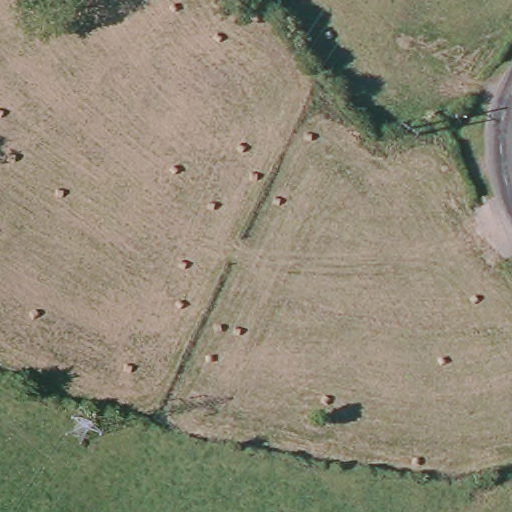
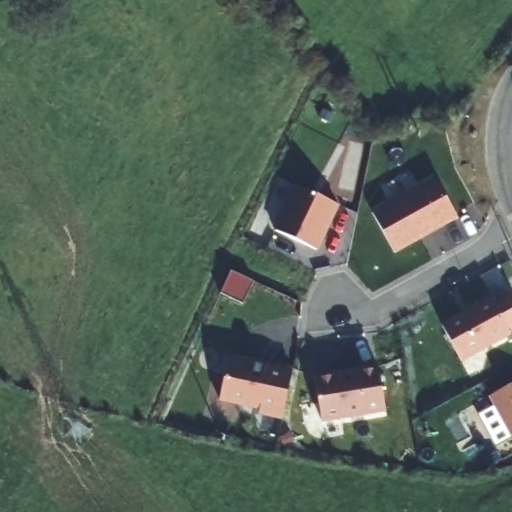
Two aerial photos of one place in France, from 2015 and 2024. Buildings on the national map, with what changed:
new [(320,104),(312,100),(316,92),(325,96),(320,104)]
new [(371,212),(434,176),(457,215),(429,231),(425,230),(420,234),(421,236),(394,252),(371,212)]
new [(317,250),(274,231),(295,185),(341,206),(317,250)]
new [(256,285),(244,308),(222,298),(233,274),(256,285)]
new [(461,360),(441,324),(492,297),(512,336),(461,360)]
new [(258,413),(259,408),(220,400),(228,354),(291,366),(282,417),(258,413)]
new [(323,424),(316,375),(378,365),(386,413),(323,424)]
new [(489,399),(512,386),(512,440),(489,399)]

